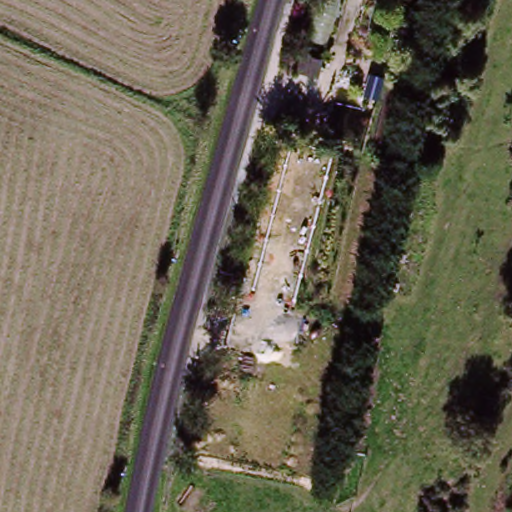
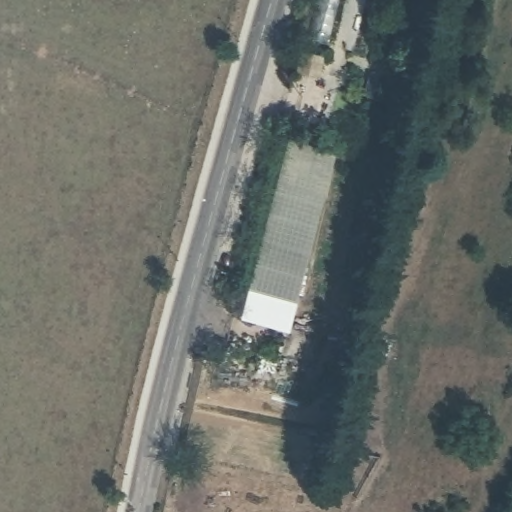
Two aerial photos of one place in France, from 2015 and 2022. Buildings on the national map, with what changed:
unchanged [(293,77),(300,57),(326,65),(319,85),(293,77)]
new [(293,141),(334,151),(296,300),(256,290),(293,141)]

